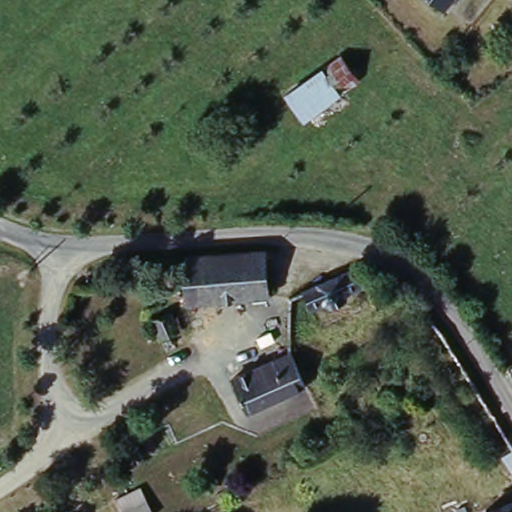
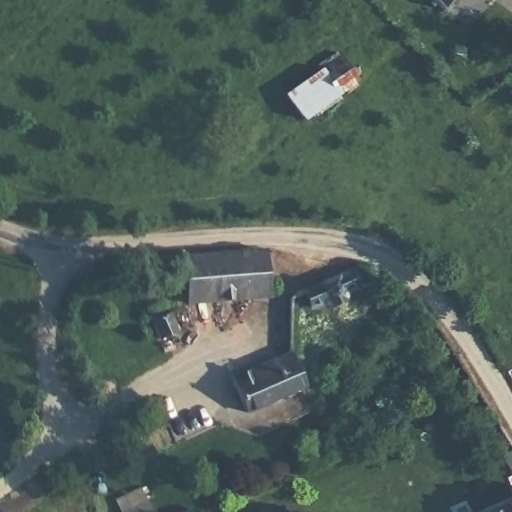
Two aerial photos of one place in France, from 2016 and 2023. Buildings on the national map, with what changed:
unchanged [(436,0),(450,0),(444,7),(436,0)]
unchanged [(278,99),(295,86),(346,47),(365,72),(313,111),(297,123),(278,99)]
unchanged [(261,291),(216,294),(212,254),(256,252),(261,291)]
unchanged [(212,254),(216,294),(184,295),(180,255),(212,254)]
unchanged [(356,285),(341,290),(340,298),(328,303),(322,299),(308,306),(300,290),(349,268),(356,285)]
unchanged [(170,321),(178,341),(157,348),(149,329),(170,321)]
unchanged [(247,410),(232,376),(291,349),(306,384),(247,410)]
unchanged [(507,468),(512,466),(512,476),(507,468)]
unchanged [(120,512),(143,499),(150,512),(120,512)]
unchanged [(484,512),(512,500),(512,512),(484,512)]

